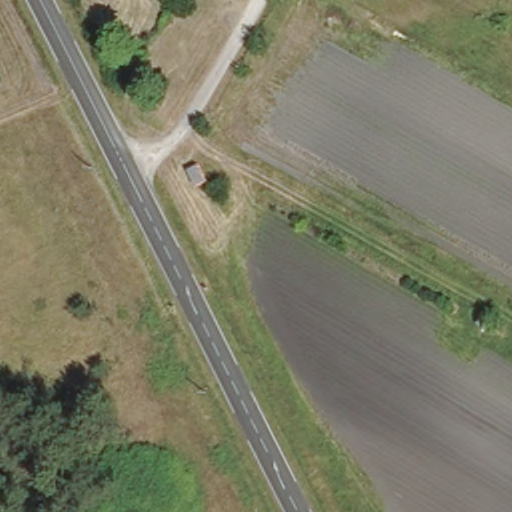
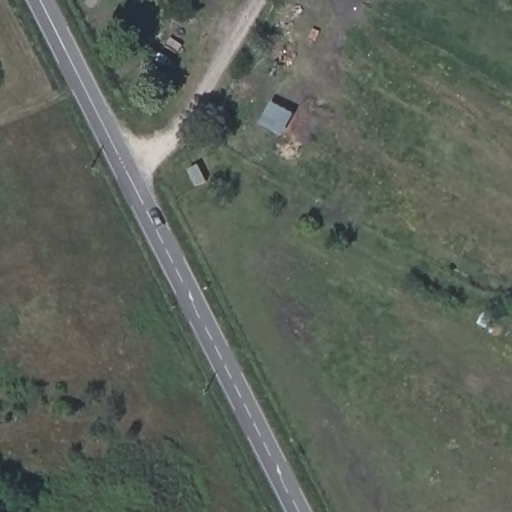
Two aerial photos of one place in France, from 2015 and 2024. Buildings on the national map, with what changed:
unchanged [(195,177),(184,184),(175,165),(186,158),(195,177)]

